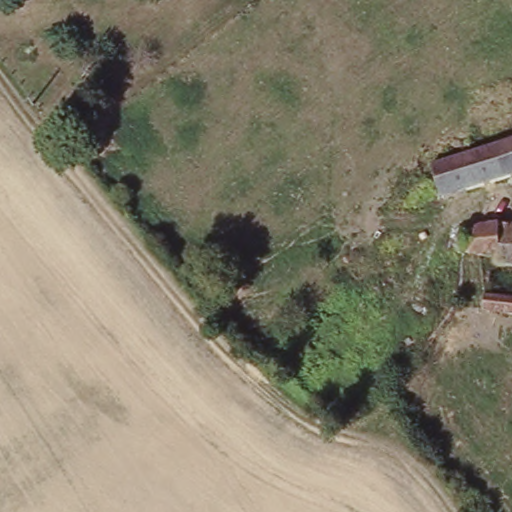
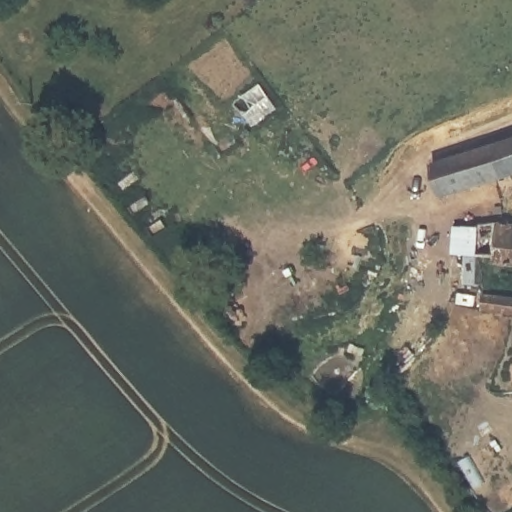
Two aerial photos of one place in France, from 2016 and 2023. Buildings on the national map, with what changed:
unchanged [(436,183),(434,174),(512,140),(512,175),(444,204),(436,183)]
unchanged [(492,222),(512,224),(512,260),(465,255),(465,253),(464,233),(492,222)]
unchanged [(512,312),(485,312),(485,294),(512,295),(512,312)]
unchanged [(261,357),(254,362),(249,354),(255,349),(261,357)]

